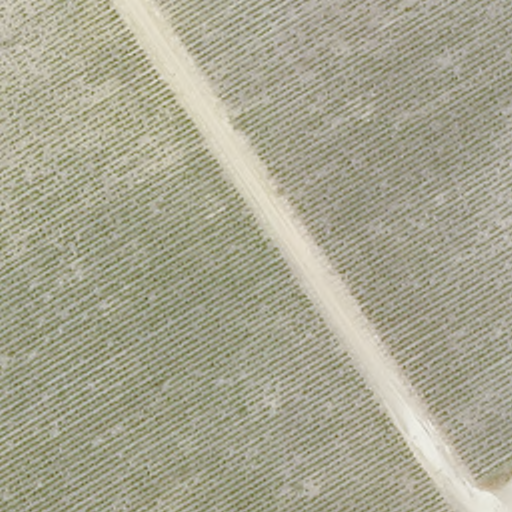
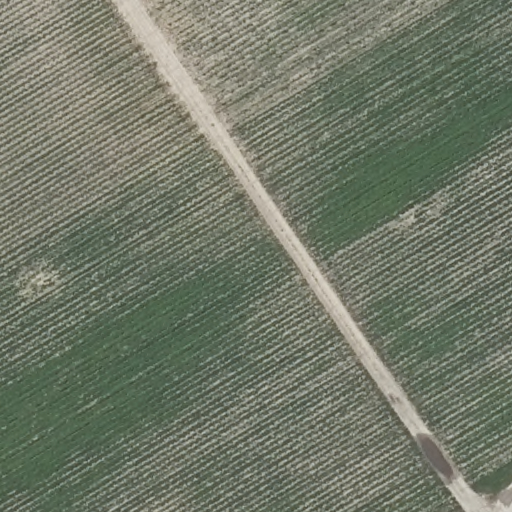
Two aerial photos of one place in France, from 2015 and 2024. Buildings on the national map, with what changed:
[]

